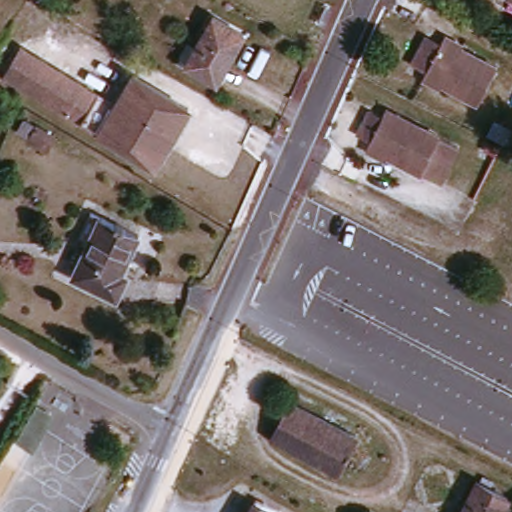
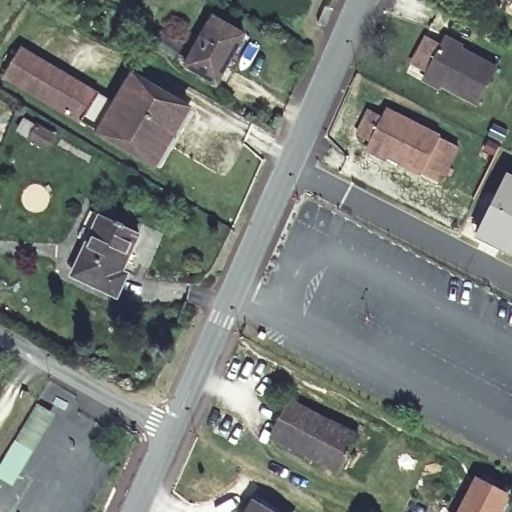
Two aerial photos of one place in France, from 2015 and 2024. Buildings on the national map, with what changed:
unchanged [(221,11),(257,31),(229,80),(194,60),(221,11)]
unchanged [(496,74),(477,110),(423,82),(442,46),(496,74)]
unchanged [(129,101),(144,73),(197,101),(168,159),(14,78),(29,49),(129,101)]
unchanged [(447,180),(374,144),(377,140),(365,134),(377,109),(388,115),(392,108),(446,135),(465,144),(447,180)]
new [(506,170),(512,173),(512,255),(472,236),(506,170)]
unchanged [(148,229),(127,269),(136,272),(124,295),(80,272),(112,210),(148,229)]
unchanged [(366,435),(345,473),(281,439),(300,400),(366,435)]
unchanged [(487,475),(512,489),(512,502),(506,512),(466,512),(487,475)]
unchanged [(268,497),(278,503),(292,512),(258,512),(268,497)]

